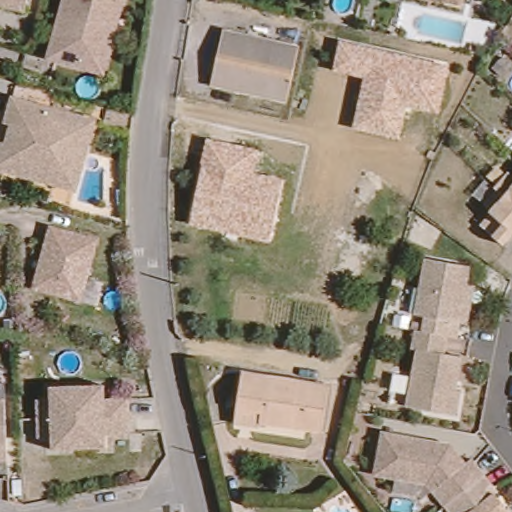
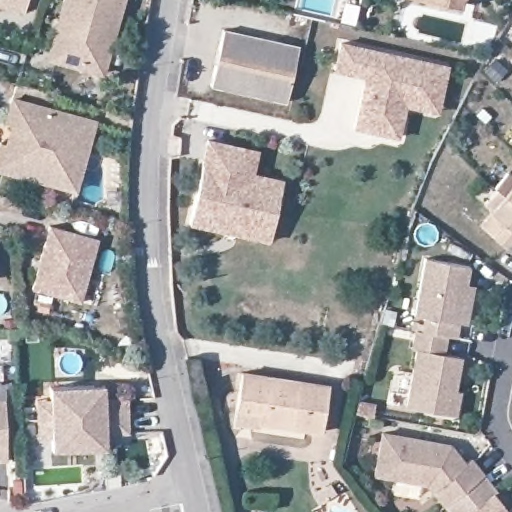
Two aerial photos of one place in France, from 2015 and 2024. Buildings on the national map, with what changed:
unchanged [(31,0),(29,9),(0,2),(0,0),(31,0)]
unchanged [(57,47),(68,4),(69,0),(128,0),(124,19),(119,39),(113,62),(91,56),(88,71),(61,64),(65,49),(57,47)]
unchanged [(409,0),(457,0),(455,12),(409,0)]
unchanged [(280,100),(206,82),(218,27),(291,45),(280,100)]
unchanged [(450,65),(440,115),(408,109),(402,140),(352,130),(363,78),(334,72),(341,39),(450,65)]
unchanged [(59,184),(0,168),(0,141),(5,121),(12,96),(95,118),(87,148),(76,189),(59,184)]
unchanged [(259,149),(254,174),(285,180),(273,241),(190,224),(208,137),(259,149)]
unchanged [(507,174),(511,177),(512,176),(512,205),(494,189),(507,174)]
unchanged [(499,245),(475,224),(487,212),(483,209),(485,207),(480,204),(494,189),(512,205),(512,235),(510,234),(499,245)]
unchanged [(85,301),(36,287),(52,224),(101,237),(85,301)]
unchanged [(467,326),(460,324),(457,338),(447,337),(423,332),(425,317),(415,315),(426,257),(470,267),(468,282),(475,283),(467,326)]
unchanged [(455,417),(450,417),(407,407),(418,351),(413,350),(416,331),(423,332),(447,337),(444,355),(462,358),(455,392),(460,392),(455,417)]
unchanged [(232,424),(233,411),(237,375),(309,382),(324,384),(323,402),(320,430),(258,422),(257,427),(232,424)]
unchanged [(98,448),(54,449),(53,437),(40,437),(39,417),(39,398),(52,397),(52,386),(96,385),(106,385),(106,399),(130,398),(130,416),(131,433),(107,433),(108,448),(98,448)]
unchanged [(8,396),(10,457),(0,458),(0,396),(8,396)]
unchanged [(447,507),(435,492),(430,484),(398,477),(378,472),(386,431),(454,446),(469,466),(475,461),(487,477),(447,507)]
unchanged [(447,507),(487,477),(500,494),(497,496),(509,512),(450,512),(447,507)]

